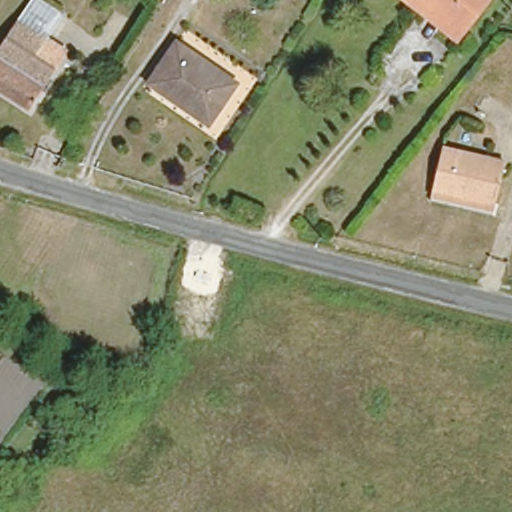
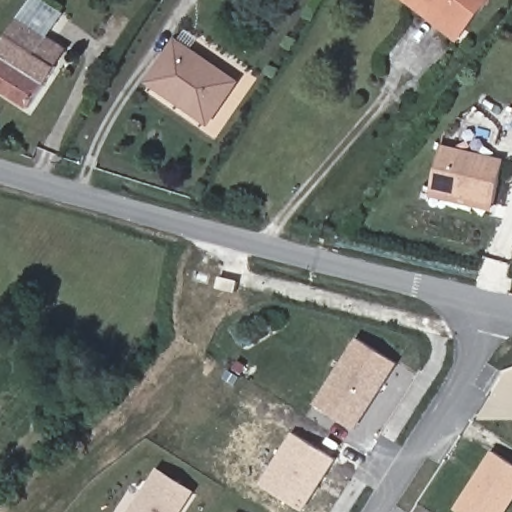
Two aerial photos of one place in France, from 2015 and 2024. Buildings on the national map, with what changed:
unchanged [(21,18),(33,0),(49,0),(67,12),(51,36),(74,50),(60,69),(30,113),(0,93),(0,49),(21,18)]
unchanged [(402,0),(488,0),(461,31),(455,40),(408,5),(402,0)]
unchanged [(148,81),(175,41),(238,81),(211,121),(148,81)]
unchanged [(430,187),(440,145),(503,160),(493,202),(430,187)]
new [(356,340),(395,365),(351,430),(313,406),(356,340)]
new [(260,483),(292,433),(336,461),(304,511),(282,497),(260,483)]
new [(512,466),(512,501),(505,512),(459,512),(457,511),(490,453),(512,466)]
new [(155,472),(188,493),(175,512),(128,512),(155,472)]

